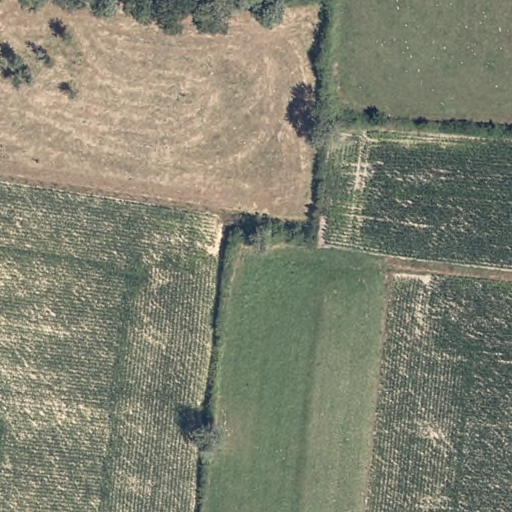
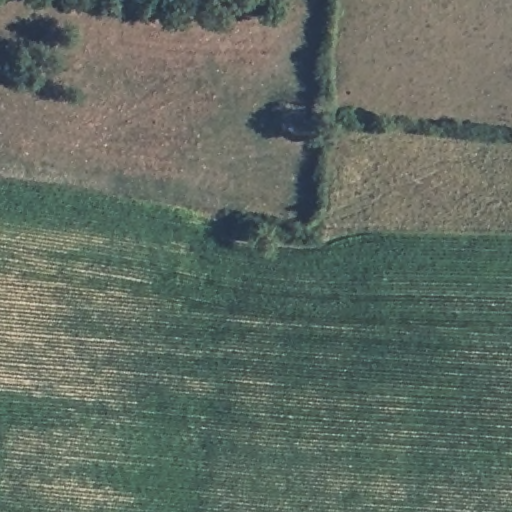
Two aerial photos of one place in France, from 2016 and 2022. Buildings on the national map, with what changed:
[]

